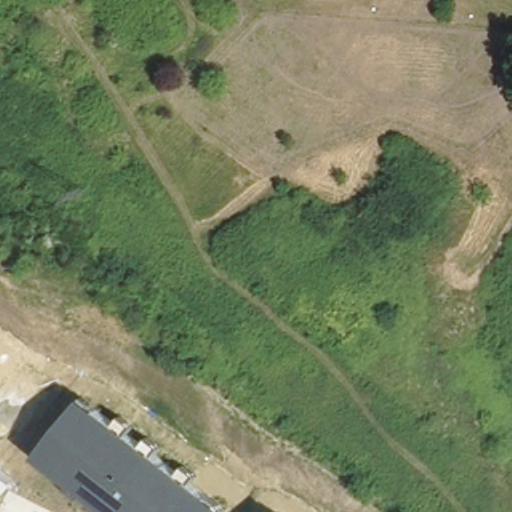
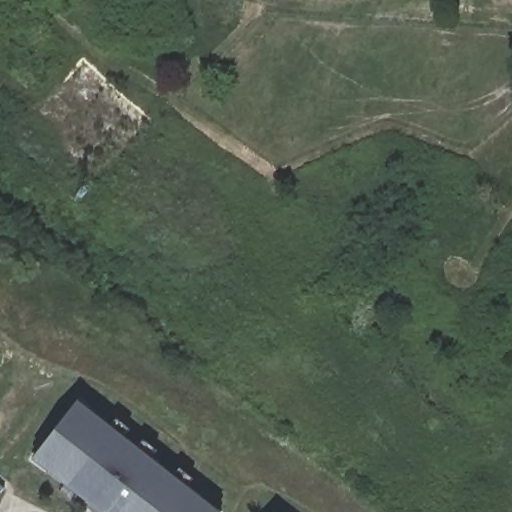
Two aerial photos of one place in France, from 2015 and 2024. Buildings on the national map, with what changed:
unchanged [(111,427),(120,416),(132,425),(122,436),(138,447),(146,438),(157,446),(148,456),(173,475),(183,465),(195,474),(186,485),(219,512),(98,512),(29,456),(76,399),(111,427)]

